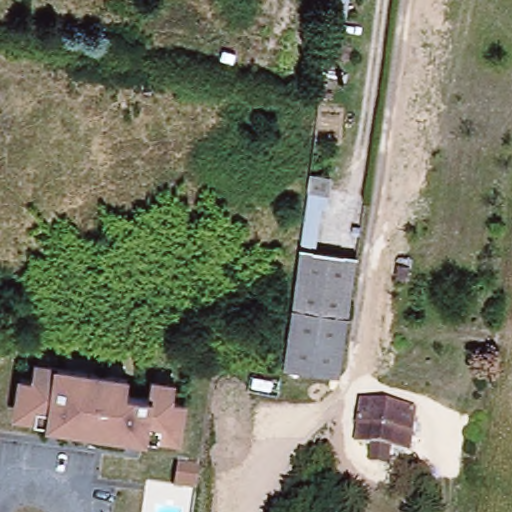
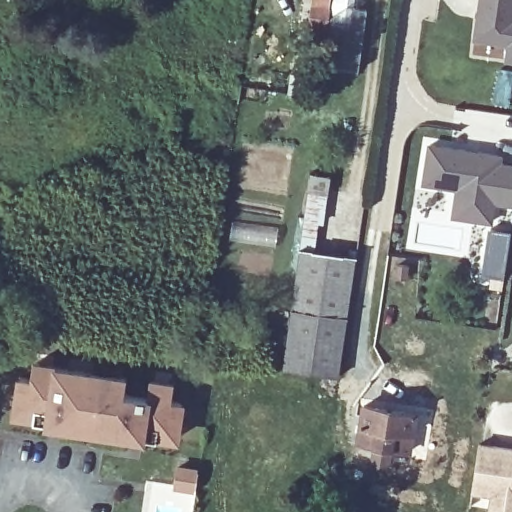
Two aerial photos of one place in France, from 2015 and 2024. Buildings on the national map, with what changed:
unchanged [(323,10),(324,0),(342,0),(340,11),(323,10)]
new [(505,60),(507,45),(472,40),(477,0),(512,0),(512,61),(505,60)]
new [(420,186),(426,147),(499,159),(497,166),(512,168),(512,207),(491,204),(488,224),(465,221),(450,218),(455,191),(420,186)]
unchanged [(301,248),(309,187),(331,192),(322,251),(301,248)]
new [(487,230),(508,233),(501,279),(480,276),(487,230)]
unchanged [(301,248),(322,251),(358,256),(342,376),(285,367),(301,248)]
unchanged [(18,402),(15,401),(19,374),(30,375),(32,360),(51,362),(45,418),(32,417),(32,415),(16,413),(18,402)]
unchanged [(156,432),(156,434),(113,428),(113,425),(76,420),(75,423),(45,418),(51,362),(125,373),(124,388),(147,391),(149,376),(172,379),(170,395),(181,396),(177,424),(174,423),(172,434),(156,432)]
unchanged [(411,449),(359,440),(365,404),(417,412),(411,449)]
new [(512,447),(512,512),(486,512),(487,496),(470,493),(477,443),(512,447)]
unchanged [(195,484),(173,480),(176,463),(198,466),(195,484)]

